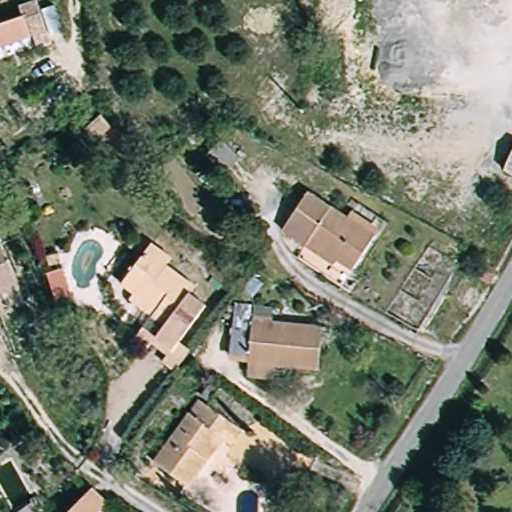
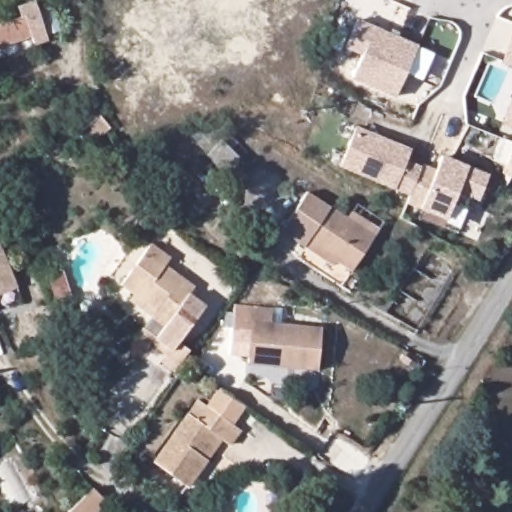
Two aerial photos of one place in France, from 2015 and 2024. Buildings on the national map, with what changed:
unchanged [(0,53),(0,27),(16,22),(13,12),(30,7),(43,44),(29,50),(27,44),(0,53)]
new [(419,47),(398,98),(354,80),(363,57),(346,50),(357,21),(419,47)]
new [(512,39),(512,67),(503,63),(512,39)]
demolished [(306,92),(313,92),(316,91),(318,103),(310,103),(306,104),(306,92)]
new [(505,124),(512,105),(512,126),(505,124)]
unchanged [(112,129),(91,148),(78,135),(100,116),(112,129)]
new [(355,127),(412,148),(407,160),(421,166),(410,194),(340,167),(355,127)]
unchanged [(222,139),(240,158),(224,175),(206,157),(222,139)]
unchanged [(512,150),(512,177),(503,172),(512,150)]
new [(410,194),(421,166),(422,163),(436,169),(442,155),(488,172),(479,196),(459,188),(448,216),(408,200),(410,194)]
unchanged [(287,232),(309,195),(373,235),(352,269),(287,232)]
unchanged [(2,237),(15,273),(17,281),(0,288),(0,238),(2,237)]
unchanged [(168,365),(171,357),(155,345),(150,353),(137,344),(143,331),(157,341),(166,326),(152,318),(130,304),(134,297),(123,289),(150,246),(171,259),(166,268),(194,287),(190,292),(208,305),(183,343),(196,351),(189,360),(181,374),(168,365)]
new [(60,277),(71,304),(54,310),(44,283),(60,277)]
unchanged [(250,379),(251,363),(252,357),(232,355),(237,306),(255,308),(256,322),(324,329),(321,370),(284,366),(282,382),(250,379)]
unchanged [(225,424),(193,401),(207,380),(242,401),(225,424)]
unchanged [(184,487),(151,465),(193,401),(225,424),(239,433),(230,447),(218,439),(204,461),(184,487)]
unchanged [(66,512),(91,487),(112,502),(101,512),(66,512)]

